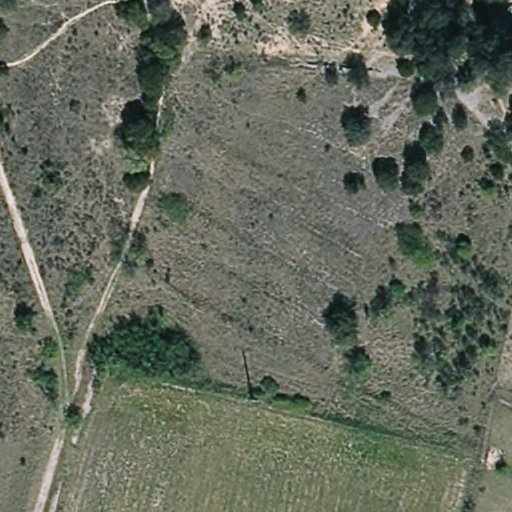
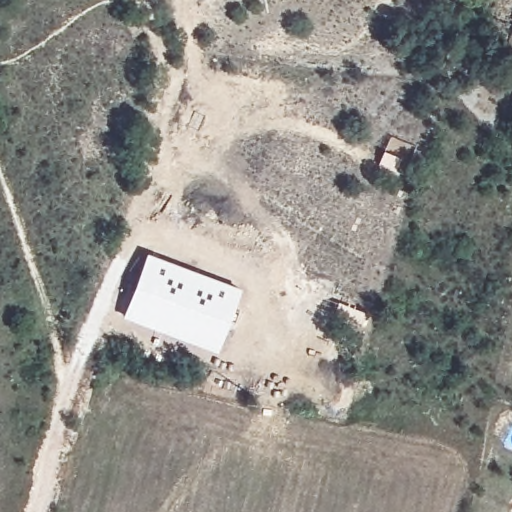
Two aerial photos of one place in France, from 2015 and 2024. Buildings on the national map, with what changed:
new [(121,316),(147,250),(241,286),(217,351),(121,316)]

